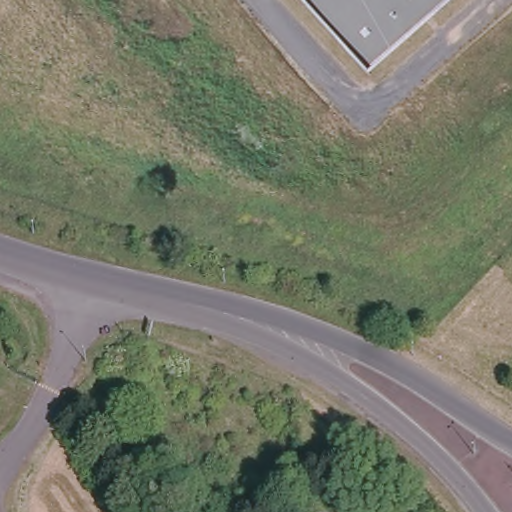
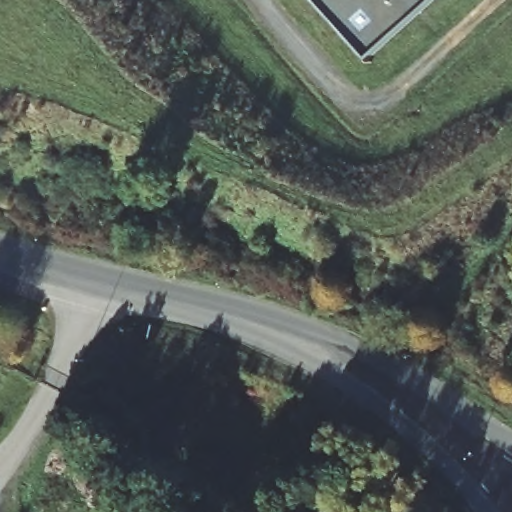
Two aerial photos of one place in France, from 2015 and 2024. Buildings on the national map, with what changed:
unchanged [(379,76),(310,0),(463,0),(379,76)]

